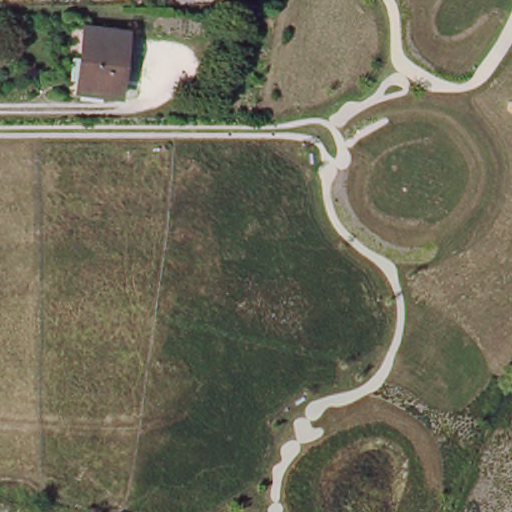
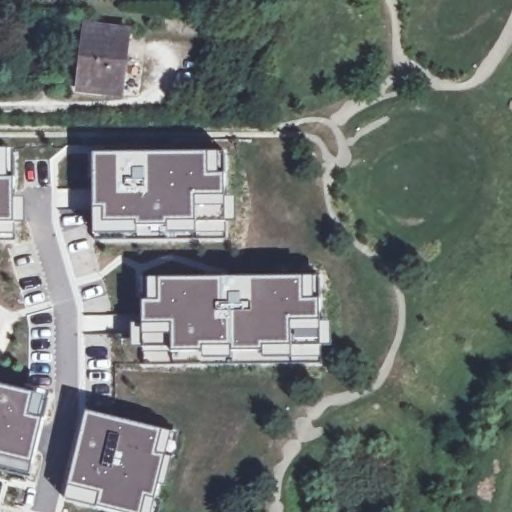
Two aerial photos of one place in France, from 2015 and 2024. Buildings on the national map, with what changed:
unchanged [(131,32),(122,96),(78,90),(87,26),(131,32)]
new [(17,149),(17,199),(25,199),(25,222),(17,223),(17,240),(0,240),(0,149),(17,149)]
new [(93,154),(176,153),(227,151),(227,195),(235,195),(236,223),(228,223),(228,241),(145,242),(93,240),(93,154)]
new [(132,322),(142,322),(142,300),(147,300),(147,278),(320,276),(322,321),(330,321),(331,346),(322,346),(322,362),(291,362),(263,362),(232,362),(197,361),(142,363),(142,349),(132,348),(132,322)]
new [(50,397),(31,478),(0,469),(0,384),(50,397)]
new [(175,434),(155,512),(107,512),(63,500),(87,412),(175,434)]

